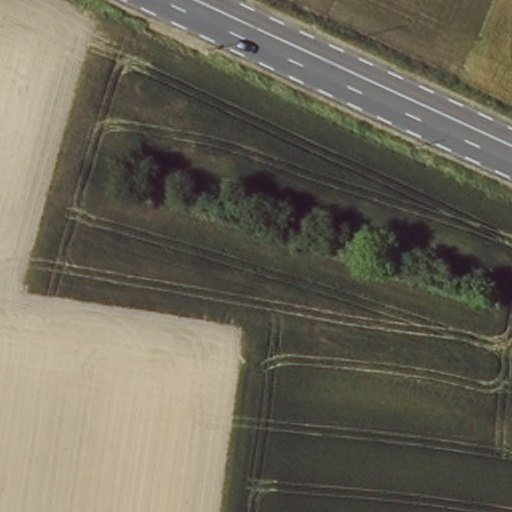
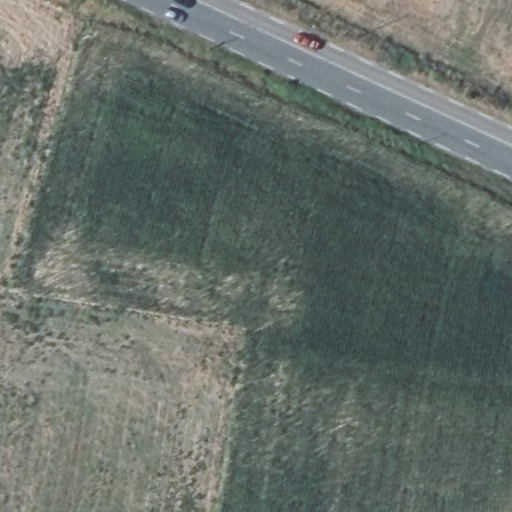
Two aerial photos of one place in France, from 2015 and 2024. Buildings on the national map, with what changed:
[]

